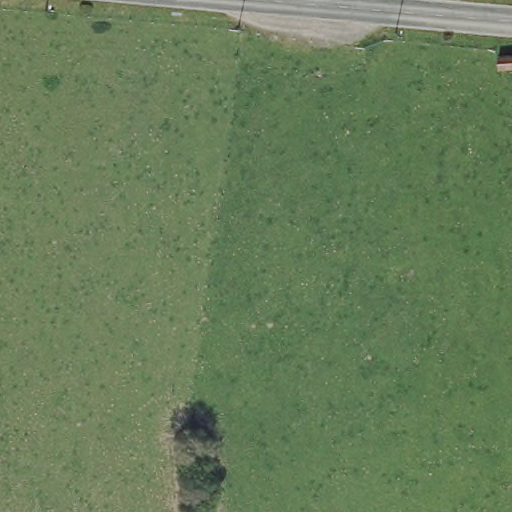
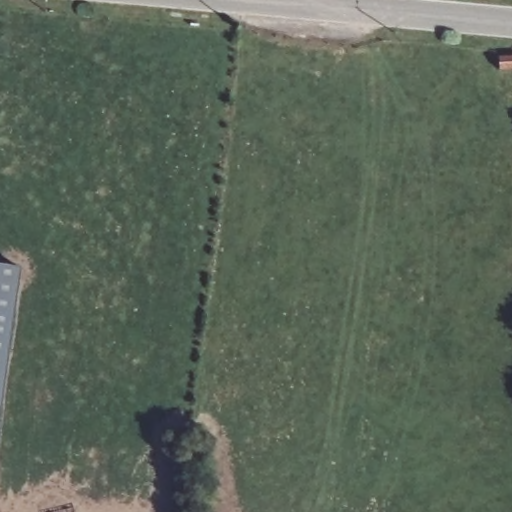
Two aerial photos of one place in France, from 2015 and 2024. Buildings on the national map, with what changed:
new [(0,410),(0,265),(20,267),(0,410)]

